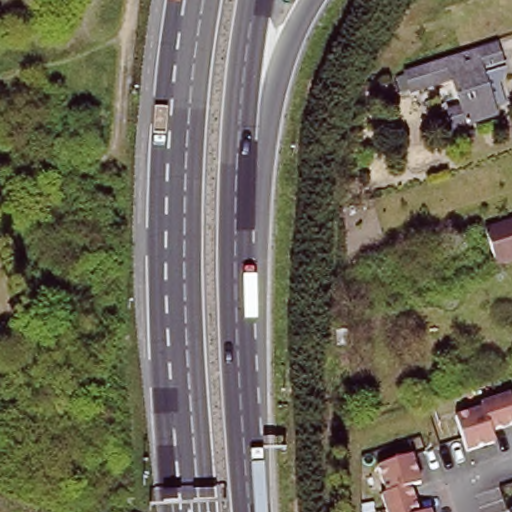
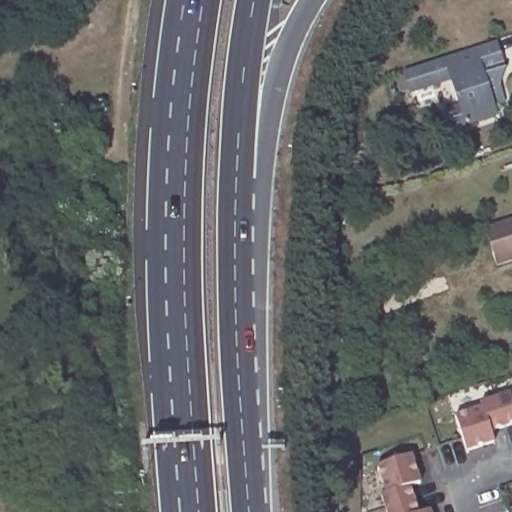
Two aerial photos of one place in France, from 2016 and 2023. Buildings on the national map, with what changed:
unchanged [(449,132),(444,115),(457,111),(448,85),(407,97),(401,77),(492,47),(499,70),(478,76),(492,118),(449,132)]
unchanged [(483,229),(512,219),(512,260),(495,265),(483,229)]
unchanged [(496,401),(511,396),(512,400),(512,428),(505,430),(496,401)]
unchanged [(505,430),(492,435),(495,445),(468,455),(467,455),(463,442),(456,420),(483,411),(482,406),(496,401),(505,430)]
unchanged [(383,493),(388,491),(379,465),(412,453),(422,481),(412,485),(416,498),(390,507),(388,508),(383,493)]
unchanged [(388,508),(390,507),(416,498),(420,512),(389,512),(388,508)]
unchanged [(431,509),(432,512),(422,512),(431,509)]

